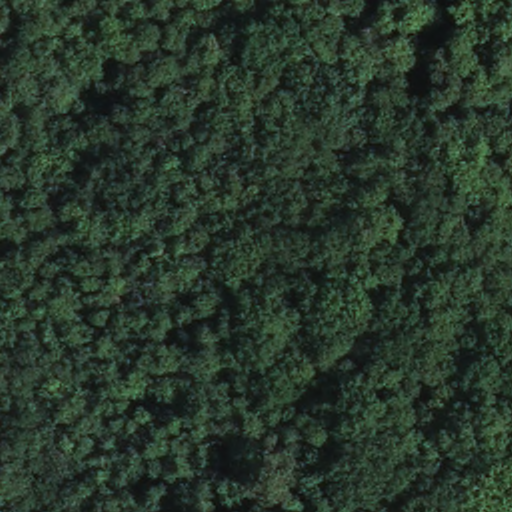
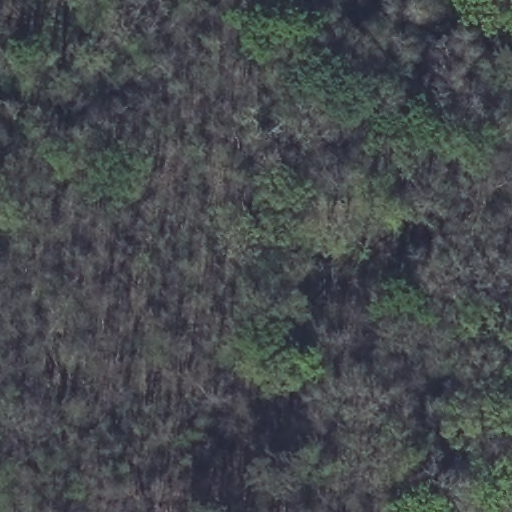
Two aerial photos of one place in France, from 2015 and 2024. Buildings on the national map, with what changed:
[]

